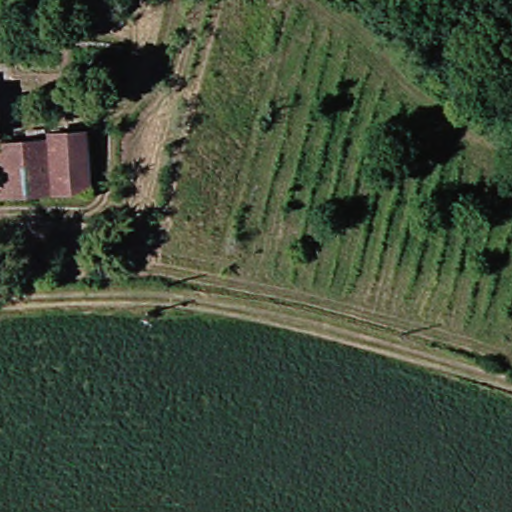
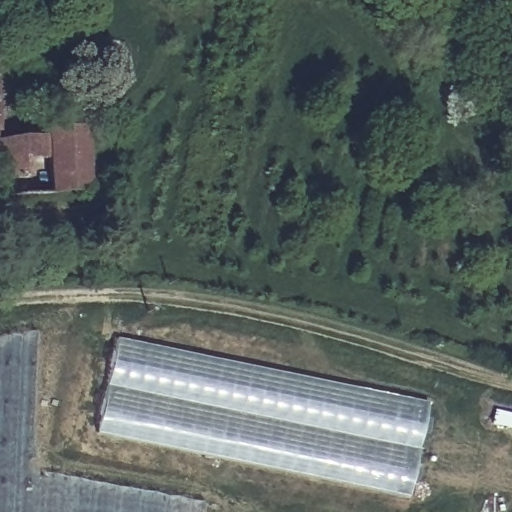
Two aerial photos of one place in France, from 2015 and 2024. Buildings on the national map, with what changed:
unchanged [(0,130),(0,84),(2,130),(0,130)]
unchanged [(93,127),(97,187),(5,194),(2,132),(93,127)]
new [(403,503),(94,434),(116,337),(422,405),(403,503)]

